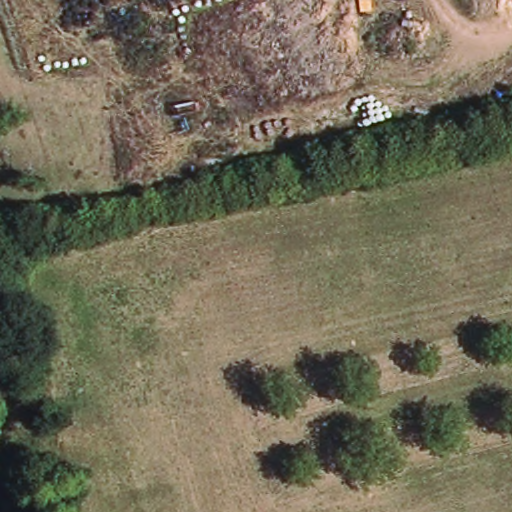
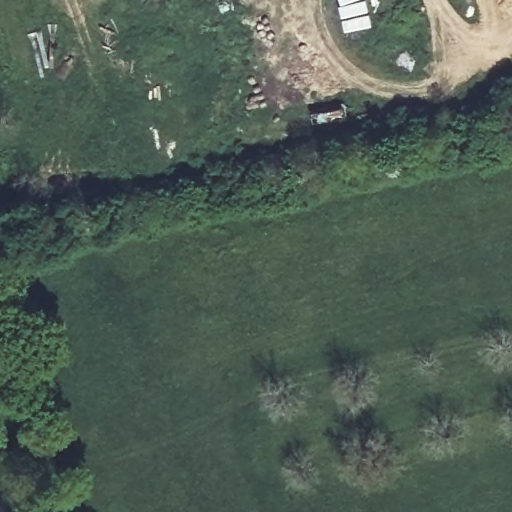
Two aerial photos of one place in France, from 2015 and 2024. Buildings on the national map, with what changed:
[]

